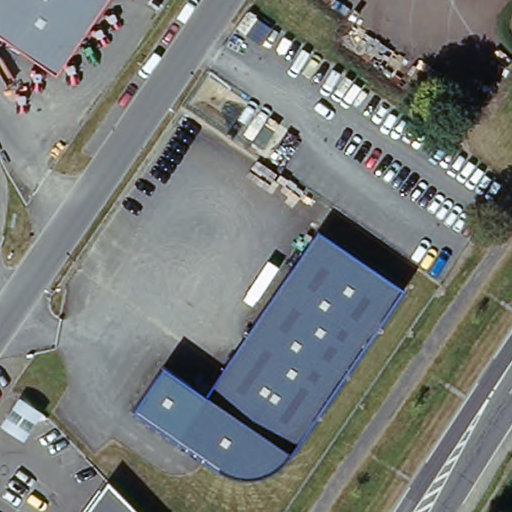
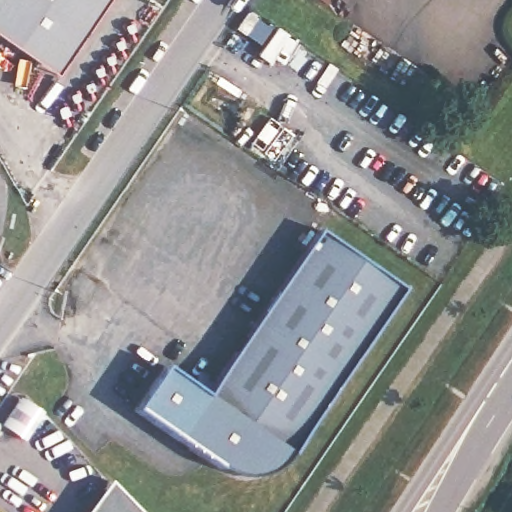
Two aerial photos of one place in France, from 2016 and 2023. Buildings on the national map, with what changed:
unchanged [(33,63),(0,41),(0,0),(108,0),(68,57),(54,78),(33,63)]
unchanged [(204,398),(320,237),(401,294),(286,455),(277,467),(259,476),(233,476),(136,410),(164,370),(204,398)]
unchanged [(139,512),(87,512),(109,482),(139,512)]

